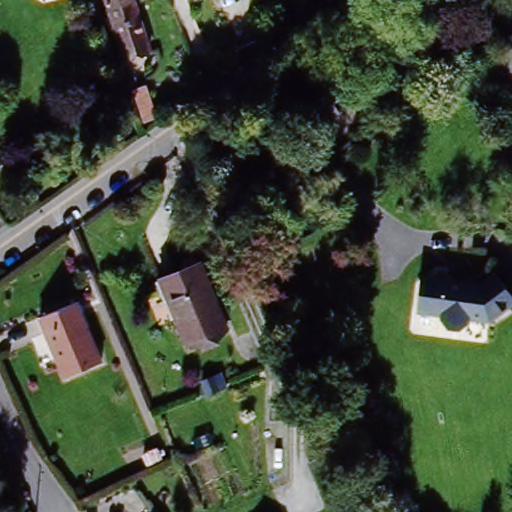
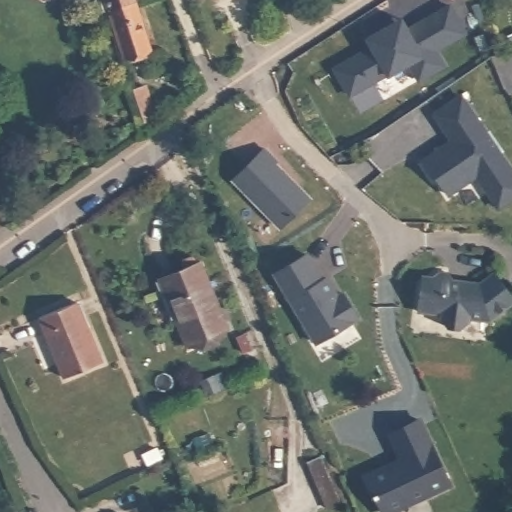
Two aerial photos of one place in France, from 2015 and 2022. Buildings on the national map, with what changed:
unchanged [(107,0),(135,0),(135,1),(110,9),(107,0)]
unchanged [(191,0),(194,0),(191,1),(191,0)]
unchanged [(135,1),(151,50),(125,59),(110,9),(135,1)]
new [(418,81),(408,64),(388,75),(380,63),(365,71),(372,83),(350,96),(334,69),(357,56),(360,60),(375,52),(367,39),(396,22),(401,19),(407,30),(408,33),(420,26),(418,24),(449,6),(465,34),(435,50),(444,66),(418,81)]
unchanged [(505,89),(490,58),(512,49),(512,86),(505,89)]
unchanged [(123,69),(134,65),(140,84),(130,88),(123,69)]
demolished [(335,118),(330,109),(322,113),(312,94),(354,70),(364,89),(345,100),(350,109),(335,118)]
unchanged [(133,89),(147,87),(158,123),(145,127),(133,89)]
new [(512,169),(512,202),(499,212),(476,179),(448,199),(436,179),(432,180),(420,161),(450,142),(434,115),(463,96),(512,169)]
new [(308,201),(279,230),(233,182),(263,154),(308,201)]
new [(324,279),(328,276),(340,294),(343,292),(359,319),(317,346),(272,275),(306,254),(324,279)]
unchanged [(190,347),(160,283),(201,264),(230,329),(190,347)]
unchanged [(480,285),(495,274),(512,298),(512,306),(490,323),(417,318),(420,290),(440,276),(447,275),(453,284),(480,285)]
unchanged [(100,359),(63,375),(37,316),(75,300),(100,359)]
new [(455,487),(399,512),(380,512),(363,479),(400,463),(386,433),(420,418),(455,487)]
new [(318,458),(338,504),(327,509),(307,463),(318,458)]

